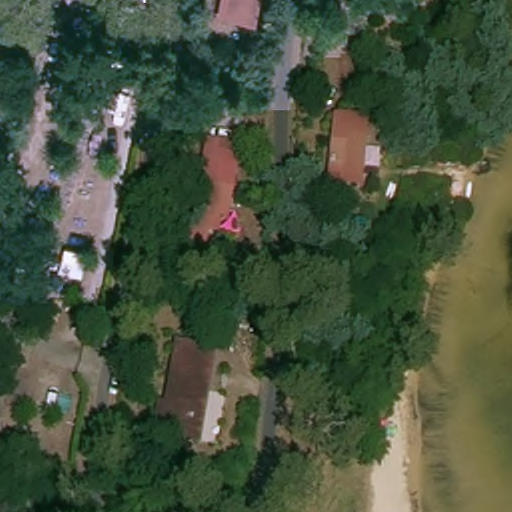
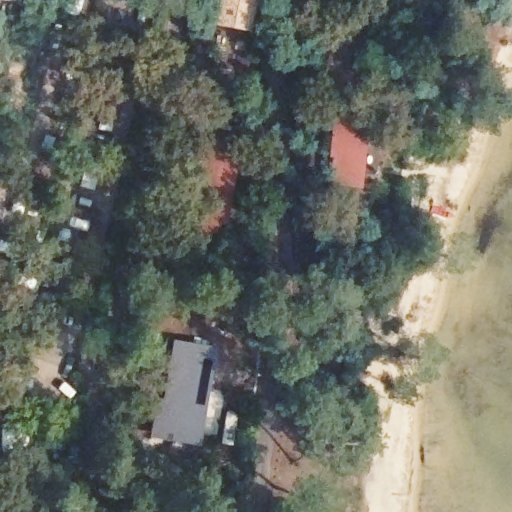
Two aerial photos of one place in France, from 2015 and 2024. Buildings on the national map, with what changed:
unchanged [(225,17),(228,0),(260,0),(255,22),(225,17)]
unchanged [(230,77),(229,90),(219,90),(220,76),(230,77)]
unchanged [(338,180),(325,179),(332,111),(357,113),(356,129),(353,129),(349,169),(348,181),(338,180)]
unchanged [(198,224),(194,246),(180,244),(183,221),(191,177),(198,134),(207,136),(205,146),(228,149),(222,182),(217,216),(203,214),(202,224),(198,224)]
unchanged [(169,433),(150,429),(155,400),(161,401),(172,339),(209,346),(196,417),(193,436),(169,433)]
unchanged [(172,509),(172,512),(136,512),(136,509),(172,509)]

